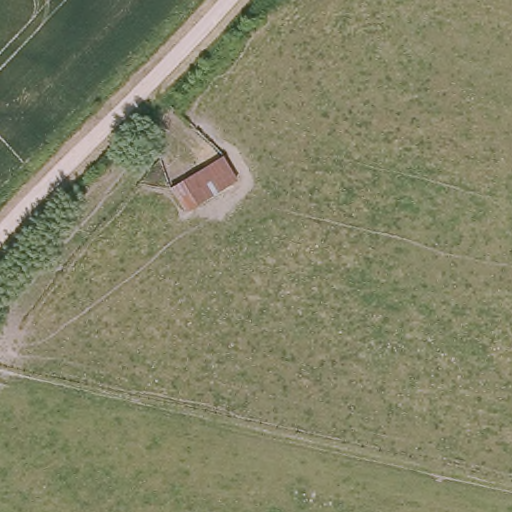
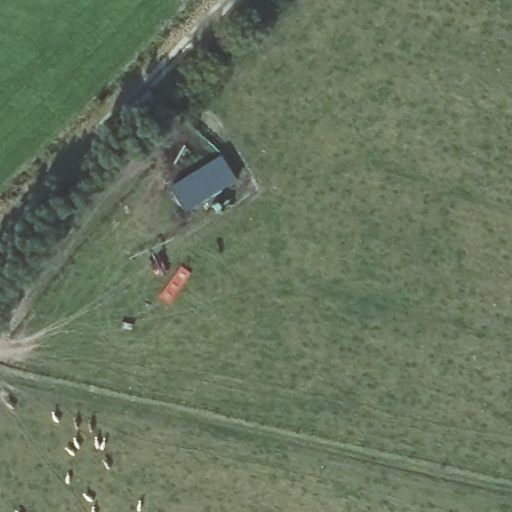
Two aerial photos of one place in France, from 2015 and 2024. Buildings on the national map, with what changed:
unchanged [(235,180),(182,212),(167,189),(220,157),(235,180)]

